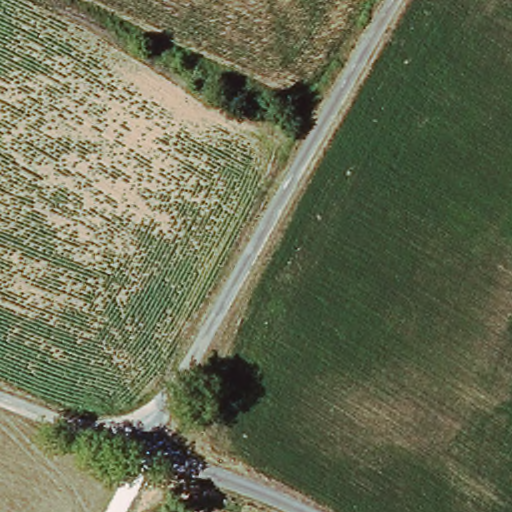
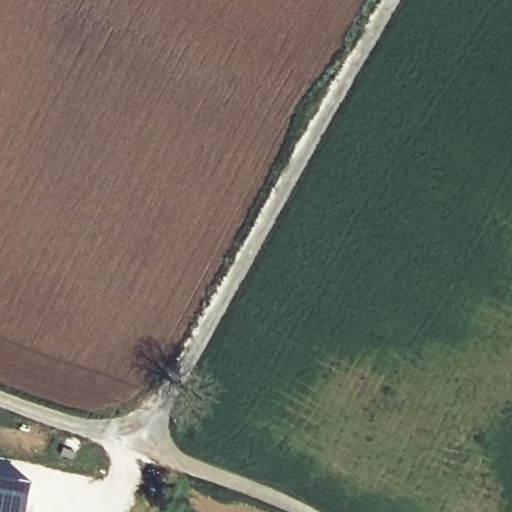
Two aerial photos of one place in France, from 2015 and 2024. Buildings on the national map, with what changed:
new [(29,512),(0,512),(0,474),(35,481),(29,512)]

